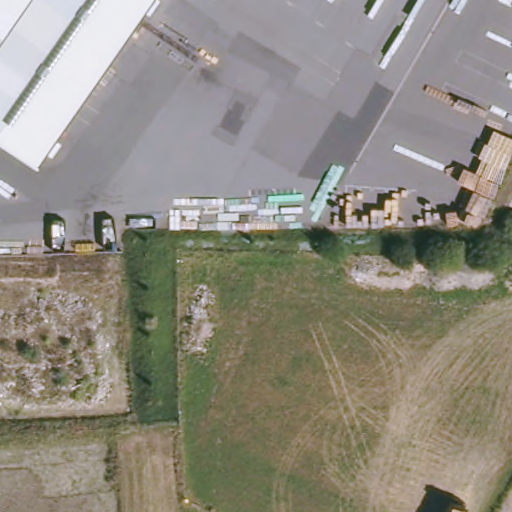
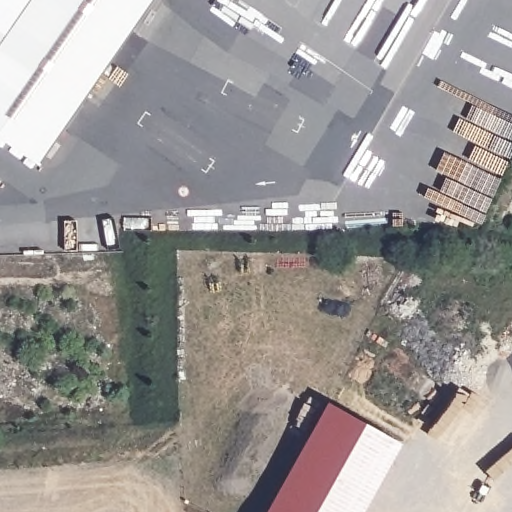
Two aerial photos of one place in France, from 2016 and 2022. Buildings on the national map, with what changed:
unchanged [(124,42),(21,190),(0,175),(0,0),(154,0),(136,25),(124,42)]
new [(326,395),(397,434),(354,512),(260,512),(326,395)]

